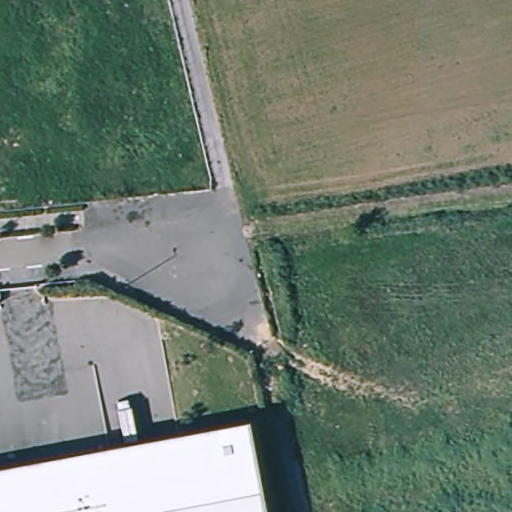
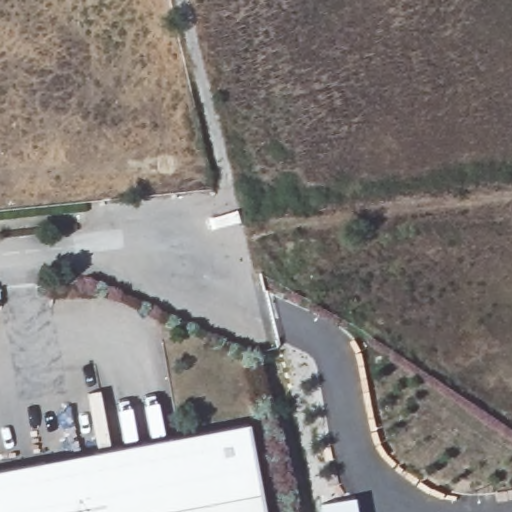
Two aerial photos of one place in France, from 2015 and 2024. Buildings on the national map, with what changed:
unchanged [(0,512),(0,470),(248,421),(264,512),(0,512)]
new [(356,512),(324,512),(323,507),(354,501),(356,512)]

